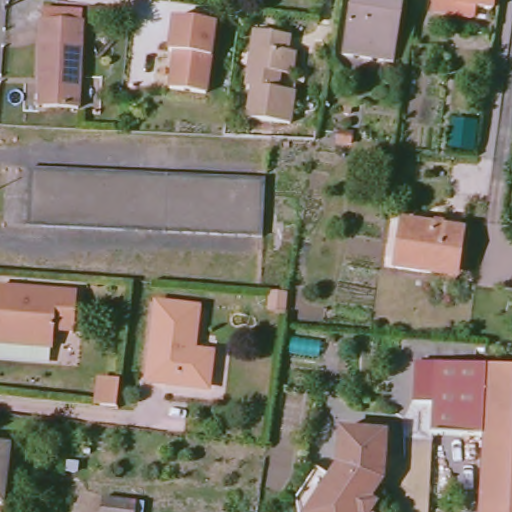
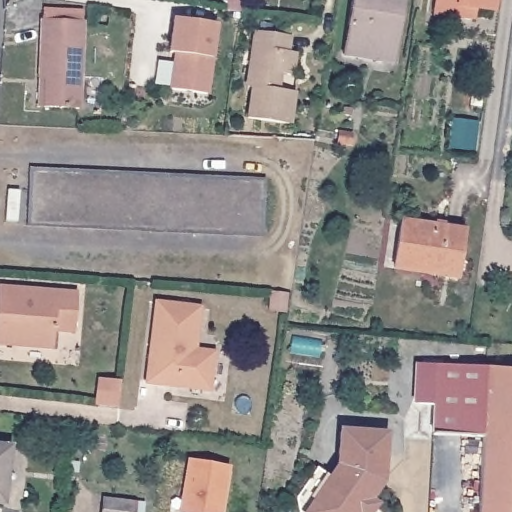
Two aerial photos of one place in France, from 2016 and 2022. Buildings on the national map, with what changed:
unchanged [(340,56),(349,0),(383,0),(383,2),(398,5),(395,33),(390,33),(388,43),(392,44),(389,63),(340,56)]
unchanged [(458,16),(435,13),(436,0),(495,0),(494,10),(476,8),(475,17),(458,16)]
unchanged [(241,11),(227,9),(228,1),(242,4),(241,11)]
unchanged [(39,79),(42,21),(43,15),(83,17),(82,23),(79,109),(43,108),(37,107),(39,79)]
unchanged [(216,24),(207,96),(170,91),(175,54),(168,53),(173,19),(216,24)]
unchanged [(250,119),(253,88),(249,86),(256,29),(290,34),(288,50),(297,52),(295,72),(280,70),(277,87),(295,90),(291,124),(250,119)]
unchanged [(27,226),(31,168),(267,179),(265,237),(27,226)]
unchanged [(395,268),(401,222),(464,232),(458,272),(437,269),(436,274),(395,268)]
unchanged [(0,343),(0,288),(77,294),(75,332),(55,331),(54,348),(0,343)]
unchanged [(287,294),(286,310),(270,309),(270,292),(287,294)]
unchanged [(200,306),(195,350),(214,352),(210,385),(166,379),(166,385),(145,382),(155,301),(200,306)]
unchanged [(485,438),(435,436),(436,401),(416,400),(417,370),(437,371),(437,366),(487,368),(485,433),(485,438)]
unchanged [(512,512),(482,512),(485,446),(485,438),(485,433),(487,368),(512,371),(512,512)]
unchanged [(99,380),(118,382),(116,406),(96,404),(99,380)]
unchanged [(32,432),(33,423),(56,426),(55,435),(32,432)]
unchanged [(383,482),(370,501),(371,507),(367,512),(298,512),(295,498),(317,468),(330,478),(338,466),(341,431),(388,435),(383,482)]
unchanged [(0,505),(0,445),(11,447),(3,505),(0,505)]
new [(227,466),(220,512),(179,512),(187,460),(227,466)]
unchanged [(133,512),(102,512),(103,499),(135,503),(133,512)]

